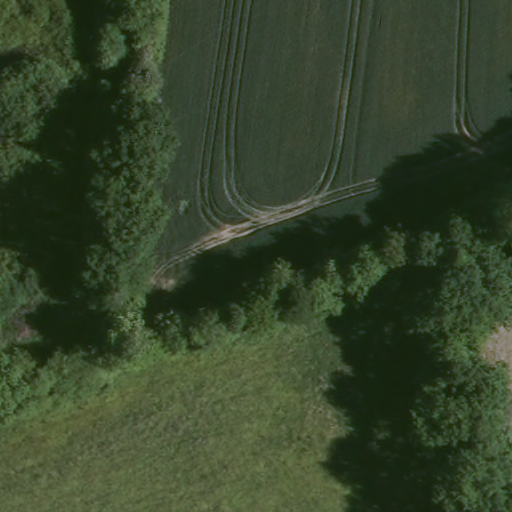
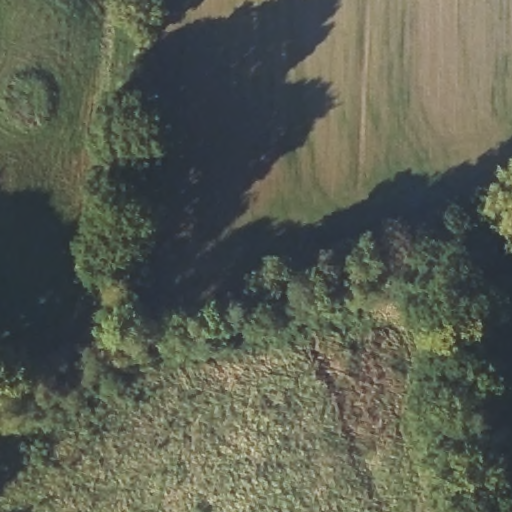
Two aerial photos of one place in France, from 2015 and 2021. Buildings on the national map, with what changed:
[]

